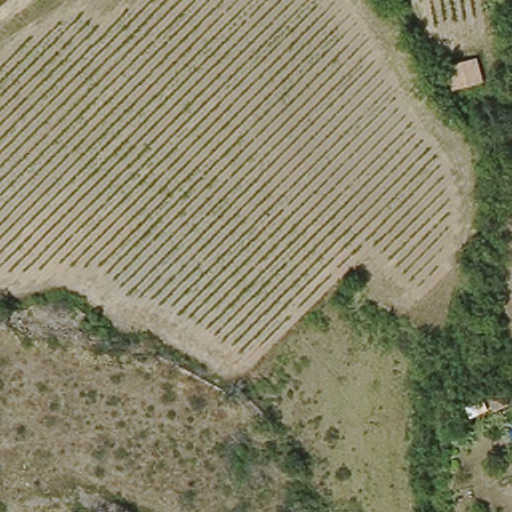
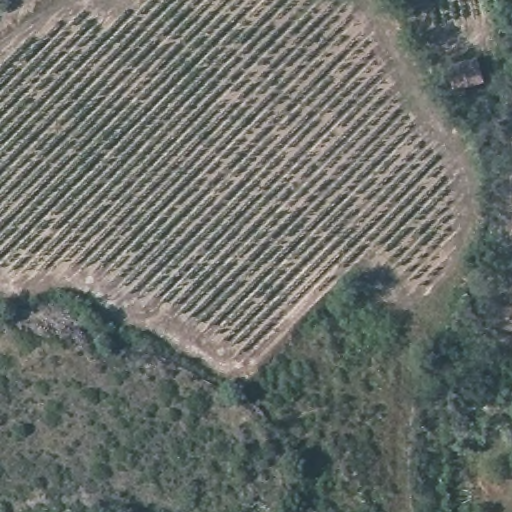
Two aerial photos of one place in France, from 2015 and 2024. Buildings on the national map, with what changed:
unchanged [(490,45),(491,81),(450,83),(448,47),(490,45)]

